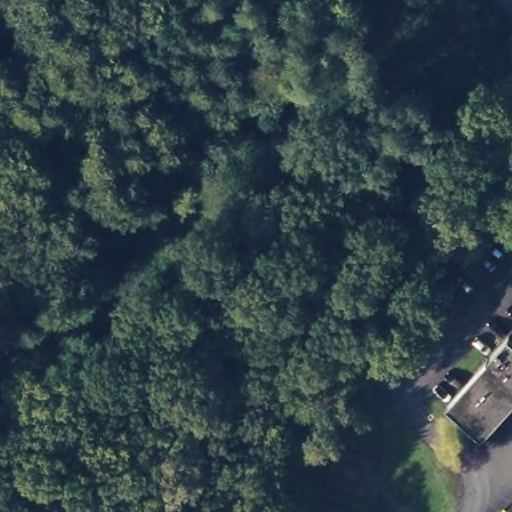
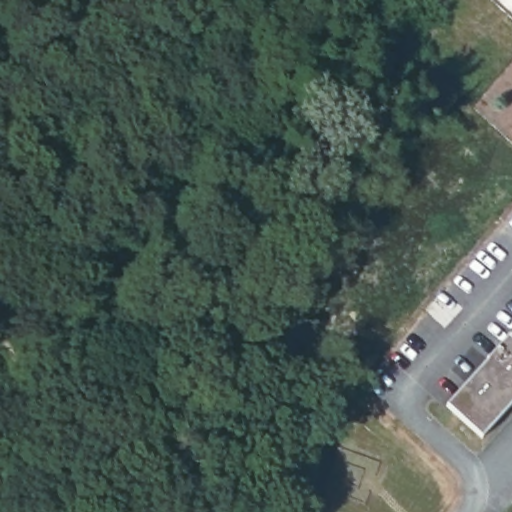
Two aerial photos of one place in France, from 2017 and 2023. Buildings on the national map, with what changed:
unchanged [(445,327),(428,312),(425,310),(442,290),(446,292),(463,307),(445,327)]
unchanged [(482,438),(447,405),(508,336),(512,340),(512,405),(482,438)]

